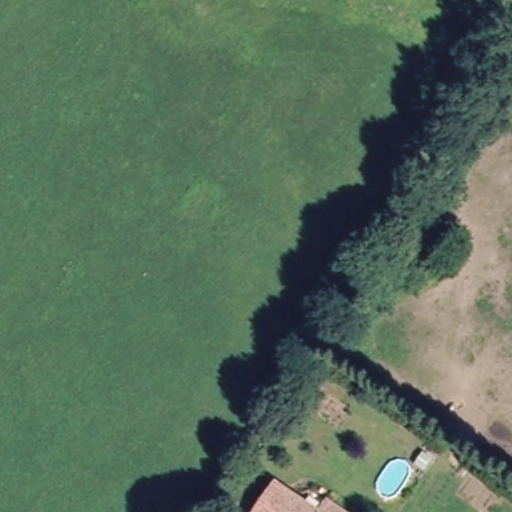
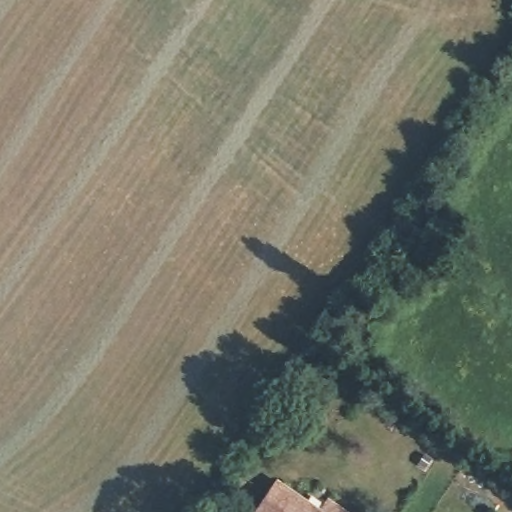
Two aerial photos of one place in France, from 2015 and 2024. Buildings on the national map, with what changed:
unchanged [(276,499),(295,512),(267,512),(276,499)]

